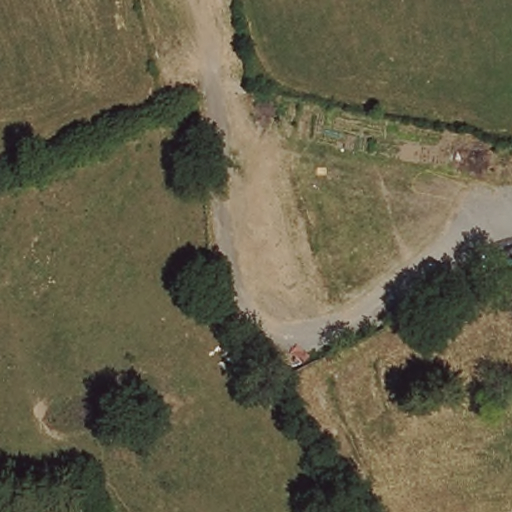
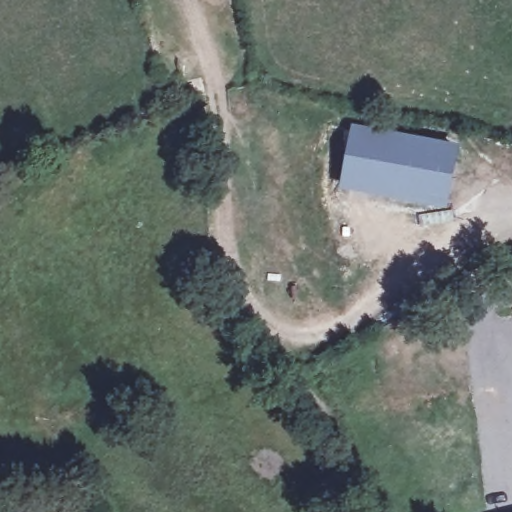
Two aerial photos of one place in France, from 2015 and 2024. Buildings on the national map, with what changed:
new [(341,191),(352,126),(462,147),(448,211),(341,191)]
demolished [(28,512),(26,512),(27,511),(28,512)]

